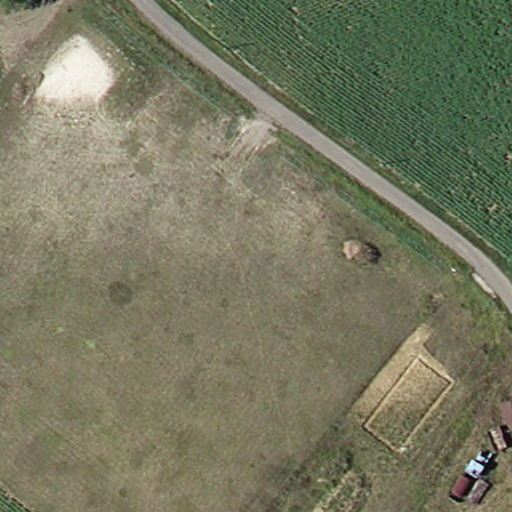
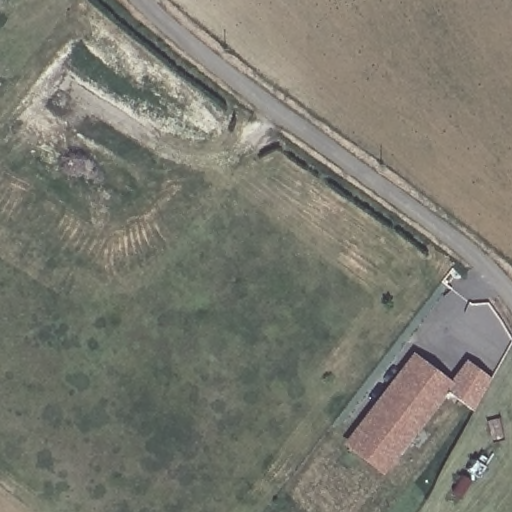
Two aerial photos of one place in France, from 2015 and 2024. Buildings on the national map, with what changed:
new [(454,385),(383,475),(343,445),(413,353),(454,385)]

